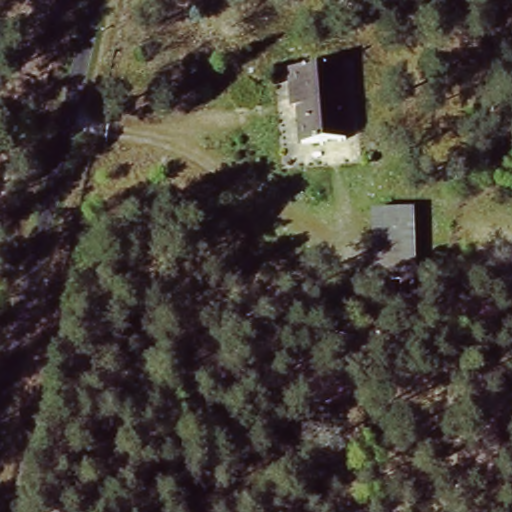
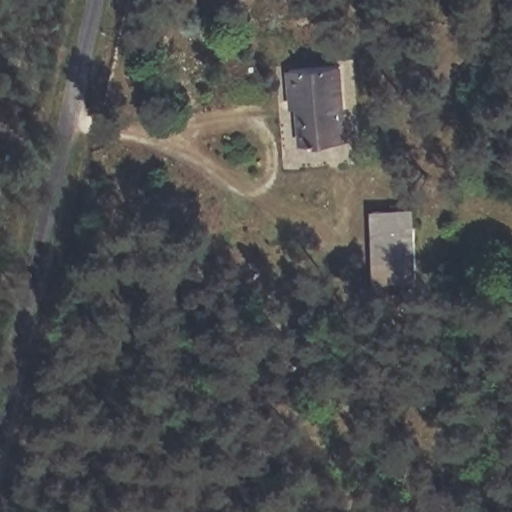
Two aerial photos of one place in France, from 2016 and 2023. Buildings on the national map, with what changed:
unchanged [(344,70),(348,144),(300,152),(293,74),(344,70)]
unchanged [(415,212),(417,283),(377,285),(372,213),(415,212)]

